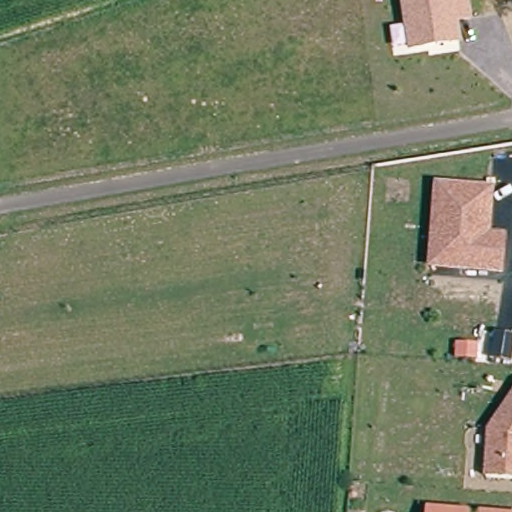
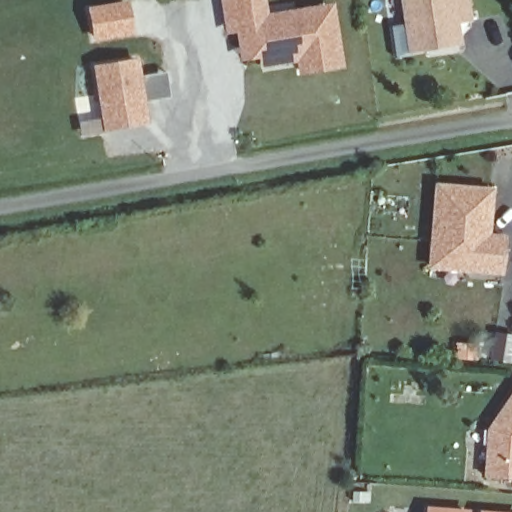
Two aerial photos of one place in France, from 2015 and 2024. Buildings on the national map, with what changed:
new [(118,0),(130,0),(136,35),(91,42),(85,6),(118,0)]
new [(297,75),(295,63),(258,68),(257,59),(239,61),(235,33),(225,35),(219,0),(266,0),(268,13),(333,3),(345,67),(297,75)]
unchanged [(472,20),(457,23),(460,43),(413,50),(406,0),(470,0),(472,20)]
new [(103,132),(92,67),(138,57),(141,77),(166,72),(170,97),(145,101),(148,124),(103,132)]
unchanged [(433,248),(438,185),(492,189),(488,235),(504,236),(502,271),(485,270),(431,266),(433,248)]
unchanged [(469,374),(448,373),(449,359),(470,360),(469,374)]
unchanged [(482,430),(512,386),(512,480),(479,478),(482,430)]
unchanged [(442,512),(427,512),(427,511),(442,512)]

